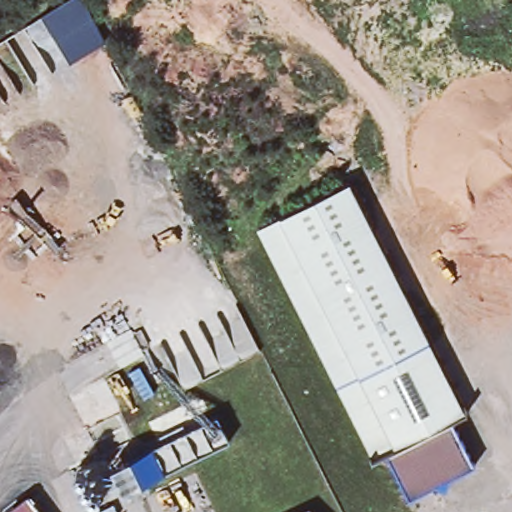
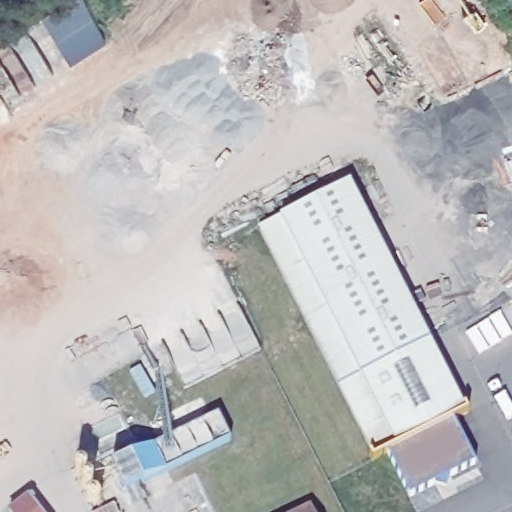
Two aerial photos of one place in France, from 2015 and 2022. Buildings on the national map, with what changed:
unchanged [(370,460),(254,237),(344,190),(460,413),(447,420),(382,454),(370,460)]
unchanged [(447,420),(470,465),(407,497),(382,454),(447,420)]
unchanged [(312,512),(303,512),(310,508),(312,512)]

